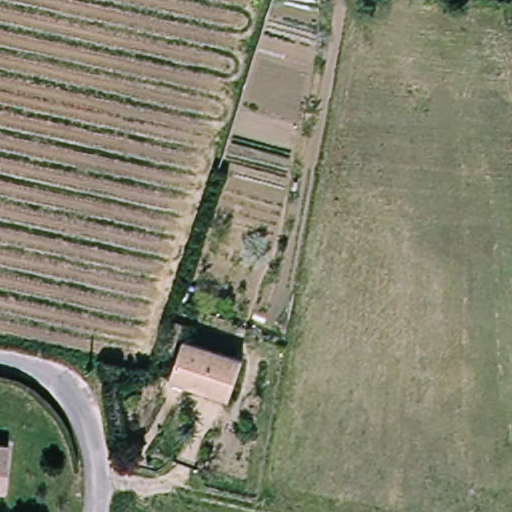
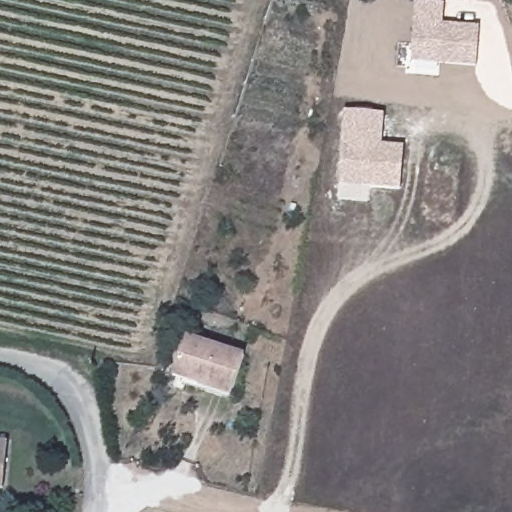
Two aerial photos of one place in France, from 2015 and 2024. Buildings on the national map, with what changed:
new [(479,26),(476,66),(412,62),(416,1),(445,3),(443,24),(479,26)]
new [(404,145),(401,189),(339,184),(344,110),(384,114),(382,144),(404,145)]
unchanged [(238,399),(179,380),(191,343),(246,359),(249,359),(240,393),(238,399)]
unchanged [(8,488),(0,487),(0,442),(11,443),(8,488)]

